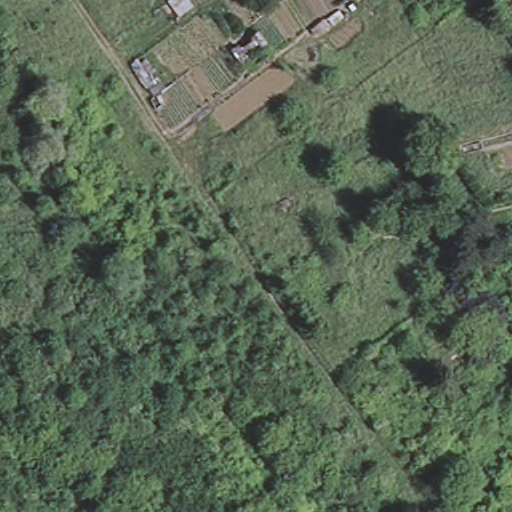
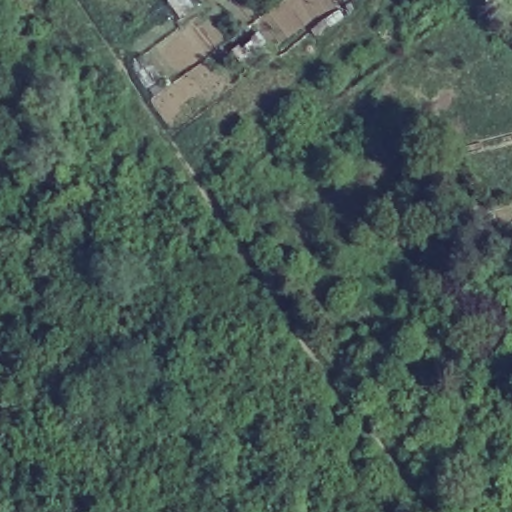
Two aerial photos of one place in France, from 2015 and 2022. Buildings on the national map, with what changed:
unchanged [(267,40),(238,64),(226,49),(254,28),(267,40)]
unchanged [(416,325),(419,330),(428,323),(439,338),(426,349),(410,330),(416,325)]

